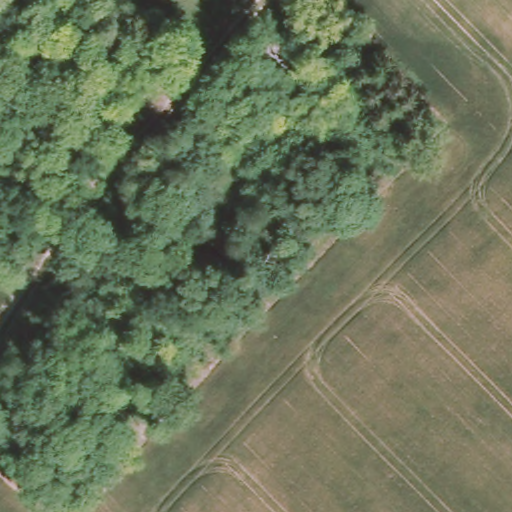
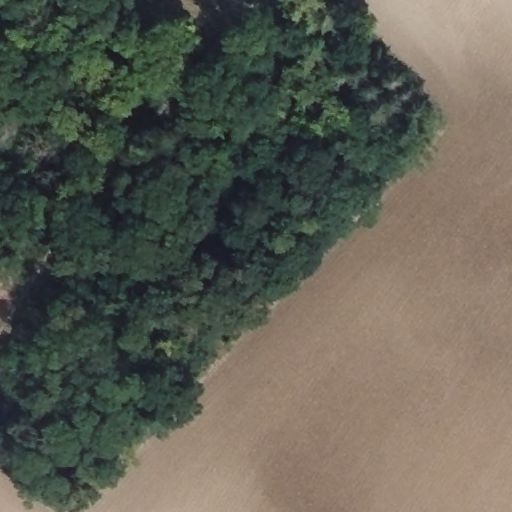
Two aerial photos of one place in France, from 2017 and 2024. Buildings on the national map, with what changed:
unchanged [(284,24),(304,42),(282,65),(262,45),(284,24)]

